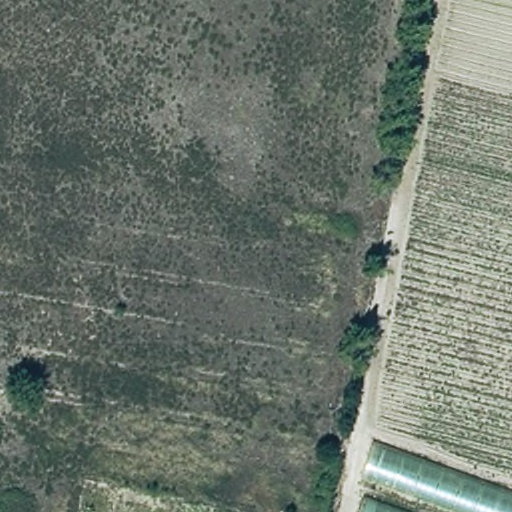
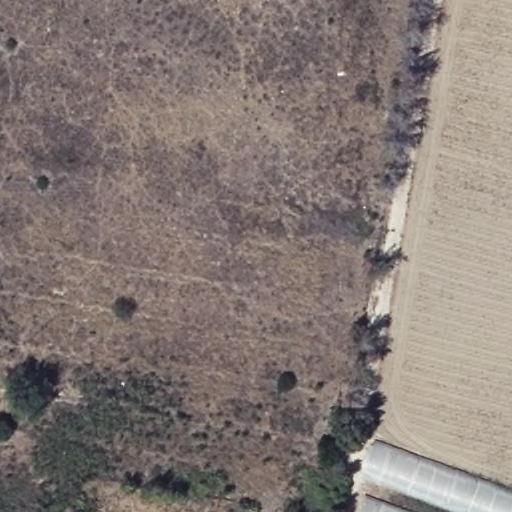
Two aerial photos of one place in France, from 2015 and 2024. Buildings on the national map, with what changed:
unchanged [(512,512),(343,512),(357,476),(348,471),(362,431),(512,485),(512,512)]

